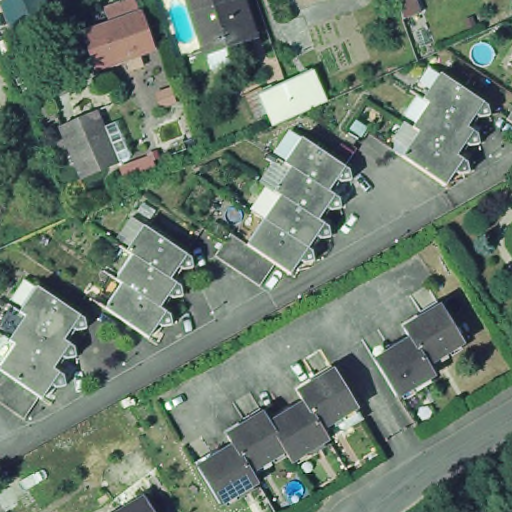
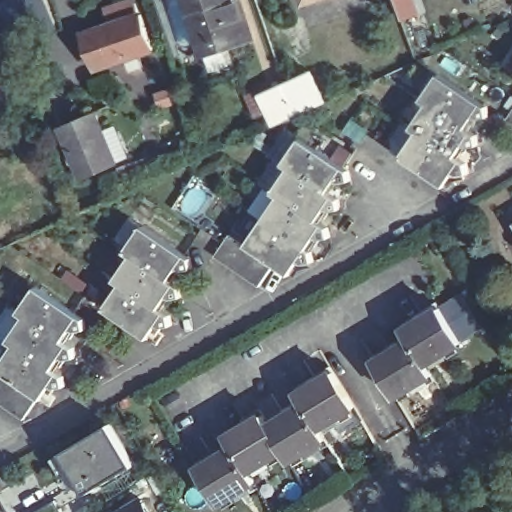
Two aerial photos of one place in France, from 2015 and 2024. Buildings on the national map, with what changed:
unchanged [(13,0),(45,0),(55,23),(20,37),(6,3),(13,0)]
unchanged [(200,42),(186,0),(187,0),(237,0),(247,31),(220,40),(227,59),(209,65),(200,42)]
unchanged [(405,19),(397,0),(415,0),(420,14),(405,19)]
unchanged [(137,19),(149,54),(92,74),(79,39),(107,29),(102,13),(127,4),(129,9),(131,8),(135,20),(137,19)]
unchanged [(311,71),(325,103),(297,115),(285,83),(311,71)]
unchanged [(488,106),(490,116),(480,119),(475,115),(467,128),(462,125),(440,110),(435,108),(429,104),(423,99),(440,74),(488,106)]
unchanged [(285,83),(297,115),(275,125),(269,111),(257,116),(247,94),(259,89),(261,94),(285,83)]
unchanged [(435,108),(440,110),(462,125),(467,128),(477,135),(480,144),(469,146),(465,144),(457,156),(452,154),(423,134),(419,132),(417,130),(412,128),(413,128),(429,104),(435,108)]
unchanged [(507,119),(512,113),(512,123),(507,119)]
unchanged [(78,184),(56,132),(92,117),(113,169),(78,184)]
unchanged [(423,134),(452,154),(457,156),(467,164),(469,173),(460,175),(455,172),(445,187),(410,162),(402,156),(419,132),(423,134)]
unchanged [(346,168),(350,170),(352,180),(342,183),(337,179),(329,192),(325,189),(291,167),(285,163),(302,138),(346,168)]
unchanged [(325,189),(329,192),(339,199),(342,209),(332,211),(327,208),(319,220),(281,195),(275,191),(291,167),(325,189)]
unchanged [(281,195),(319,220),(329,228),(332,237),(321,239),(317,237),(309,249),(304,246),(280,230),(264,220),(281,195)]
unchanged [(239,271),(227,264),(215,256),(219,252),(225,243),(231,234),(242,241),(247,245),(264,220),(280,230),(304,246),(309,249),(312,252),(315,261),(305,263),(301,260),(292,274),(277,264),(275,264),(260,286),(249,279),(239,271)]
unchanged [(192,263),(194,273),(184,275),(180,273),(171,285),(170,284),(167,282),(152,273),(148,270),(132,260),(127,256),(127,255),(145,231),(192,263)]
unchanged [(148,270),(152,273),(167,282),(170,284),(171,285),(181,292),(182,302),(174,304),(169,300),(160,313),(156,310),(139,299),(135,297),(122,289),(116,284),(132,260),(148,270)]
unchanged [(85,319),(87,329),(77,331),(73,328),(65,340),(63,339),(60,338),(39,324),(33,319),(27,316),(21,312),(37,287),(85,319)]
unchanged [(135,297),(139,299),(156,310),(160,313),(171,320),(173,329),(164,332),(158,329),(149,343),(139,336),(105,313),(122,289),(135,297)]
unchanged [(462,342),(427,363),(423,358),(420,353),(412,339),(405,329),(442,307),(462,342)]
unchanged [(33,319),(39,324),(60,338),(63,339),(65,340),(75,348),(77,357),(67,359),(63,356),(55,369),(50,366),(24,349),(20,346),(17,344),(10,340),(27,316),(33,319)]
unchanged [(375,361),(412,339),(420,353),(423,358),(427,363),(433,374),(397,396),(387,381),(375,361)]
unchanged [(0,402),(0,369),(17,344),(20,346),(24,349),(50,366),(55,369),(65,376),(67,386),(57,387),(53,384),(43,399),(40,397),(25,419),(14,412),(3,404),(0,402)]
unchanged [(356,411),(320,433),(314,422),(305,408),(299,398),(335,376),(356,411)]
unchanged [(314,422),(320,433),(327,443),(291,464),(285,454),(272,433),(270,429),(305,408),(314,422)]
unchanged [(270,429),(272,433),(285,454),(250,476),(242,463),(235,451),(228,441),(264,419),(270,429)]
new [(66,474),(64,476),(55,458),(64,453),(111,426),(134,465),(87,493),(82,484),(74,487),(66,474)]
unchanged [(242,463),(250,476),(256,487),(220,508),(199,473),(235,451),(242,463)]
new [(57,501),(64,512),(37,512),(57,501)]
unchanged [(138,504),(143,512),(126,512),(138,504)]

